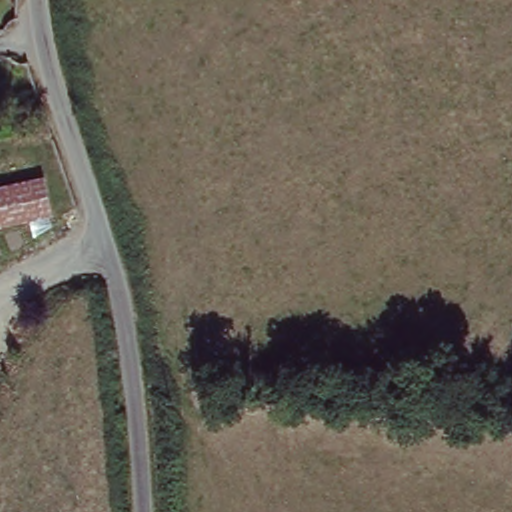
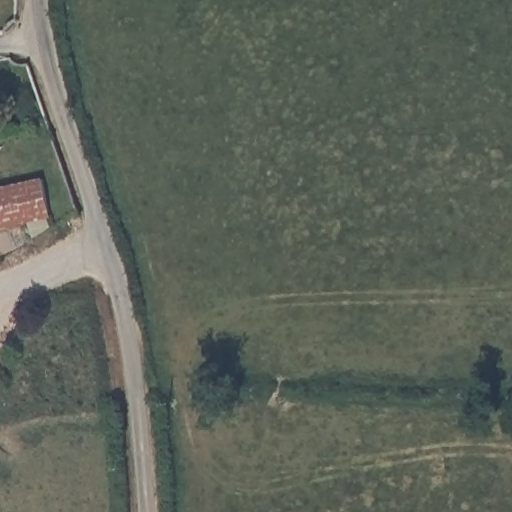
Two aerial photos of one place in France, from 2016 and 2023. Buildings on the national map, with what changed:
unchanged [(0,228),(0,191),(46,180),(54,215),(0,228)]

